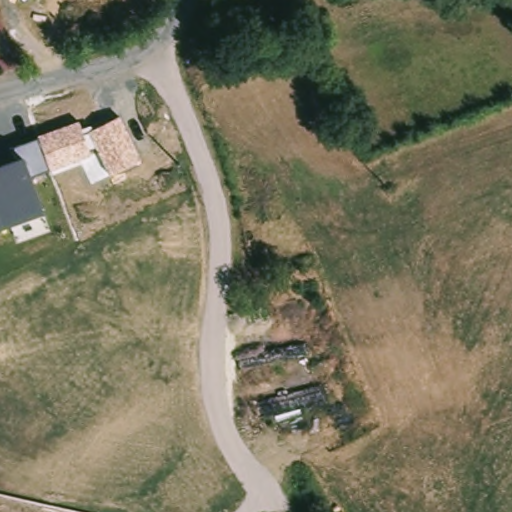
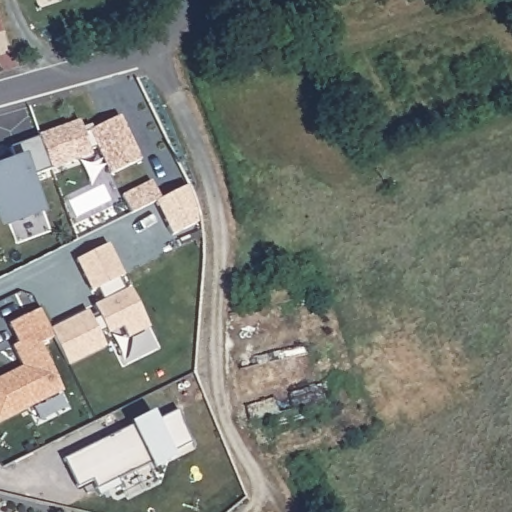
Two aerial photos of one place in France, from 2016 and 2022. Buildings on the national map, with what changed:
unchanged [(108,175),(94,147),(86,150),(88,156),(49,170),(29,177),(43,213),(0,229),(0,166),(16,160),(12,147),(38,139),(38,135),(78,120),(82,128),(92,124),(93,129),(117,116),(138,160),(108,175)]
new [(153,177),(161,195),(132,209),(123,191),(153,177)]
new [(118,279),(124,290),(128,287),(148,327),(128,337),(122,327),(107,334),(104,330),(97,333),(105,347),(66,366),(52,338),(39,344),(62,391),(0,421),(0,377),(21,367),(12,346),(15,344),(7,325),(39,310),(48,331),(87,311),(89,317),(96,313),(92,305),(103,301),(97,287),(89,291),(75,260),(108,244),(124,276),(118,279)]
demolished [(12,308),(20,321),(1,340),(0,341),(0,308),(8,302),(12,308)]
new [(132,423),(130,421),(151,411),(155,419),(178,408),(182,423),(191,442),(171,451),(174,457),(153,467),(150,461),(117,477),(120,483),(98,493),(91,479),(76,486),(62,457),(132,423)]

